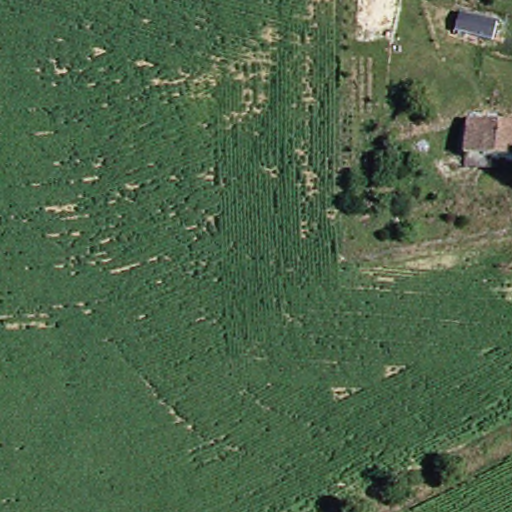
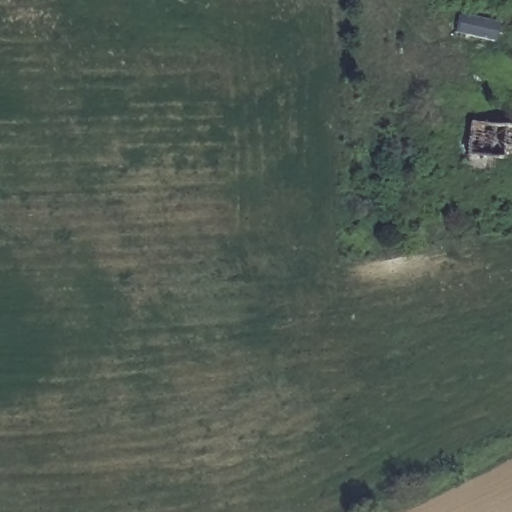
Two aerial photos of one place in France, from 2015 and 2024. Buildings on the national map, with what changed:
unchanged [(474,155),(474,120),(483,120),(512,120),(512,156),(500,156),(499,167),(474,166),(474,155)]

